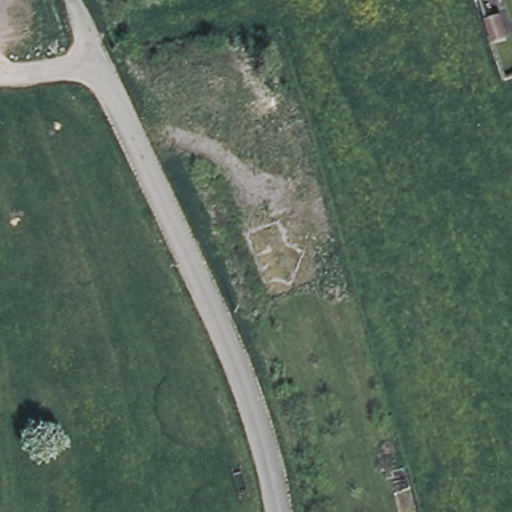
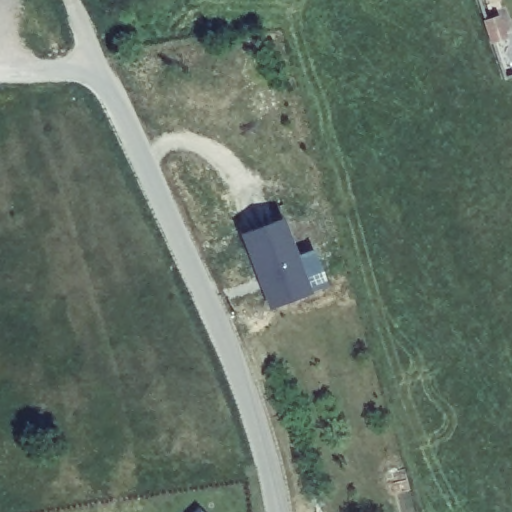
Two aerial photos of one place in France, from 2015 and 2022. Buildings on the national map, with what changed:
unchanged [(499,15),(506,38),(492,42),(484,20),(499,15)]
new [(299,255),(313,249),(327,285),(313,292),(269,310),(241,233),(285,216),(299,255)]

